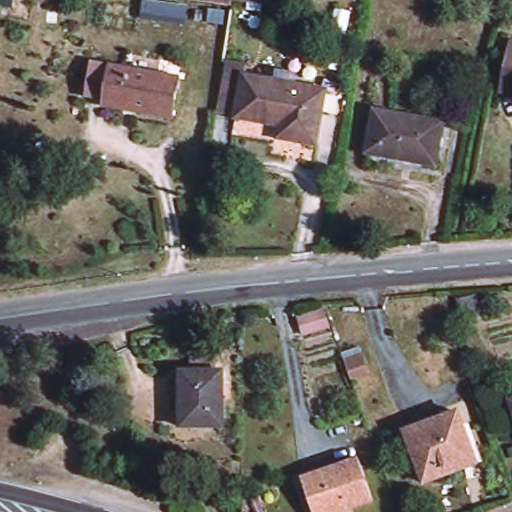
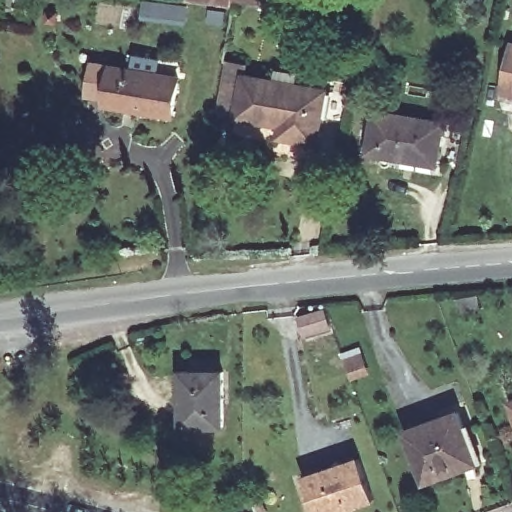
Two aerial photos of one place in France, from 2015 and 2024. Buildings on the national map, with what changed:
unchanged [(188,5),(188,0),(234,0),(233,11),(188,5)]
unchanged [(236,0),(277,0),(276,9),(235,4),(236,0)]
unchanged [(512,44),(512,94),(502,92),(512,44)]
unchanged [(281,126),(237,118),(237,117),(218,112),(226,61),(246,65),(244,76),(276,82),(279,72),(294,75),(291,85),(326,91),(316,145),(288,140),(279,138),(281,126)]
unchanged [(104,101),(105,100),(86,97),(92,64),(179,79),(172,117),(136,111),(104,106),(104,101)]
unchanged [(436,166),(367,154),(374,111),(444,123),(436,166)]
unchanged [(329,328),(304,336),(299,317),(324,311),(329,328)]
unchanged [(351,379),(349,371),(346,366),(344,361),(362,355),(364,360),(369,372),(351,379)]
unchanged [(181,432),(181,377),(193,377),(193,364),(214,364),(214,377),(223,377),(223,432),(181,432)]
unchanged [(512,402),(512,405),(511,402),(512,402)]
unchanged [(477,463),(424,483),(405,432),(458,412),(477,463)]
unchanged [(302,479),(359,460),(374,501),(350,509),(351,512),(314,512),(302,479)]

